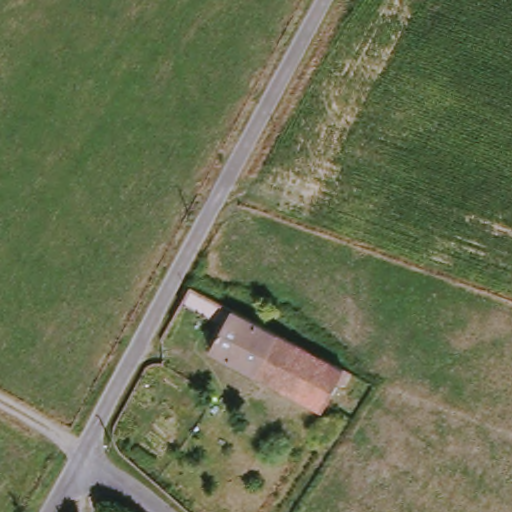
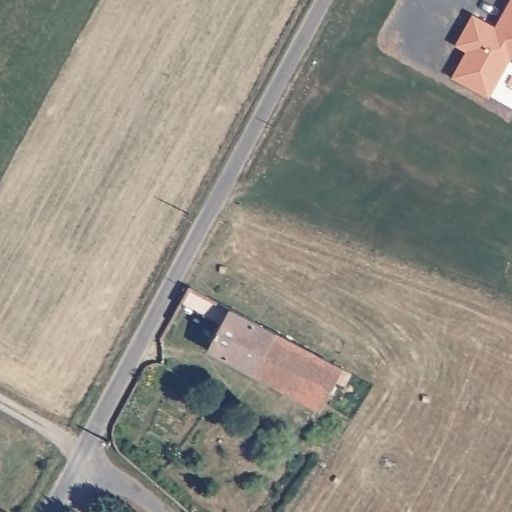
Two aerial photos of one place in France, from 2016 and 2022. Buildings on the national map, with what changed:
new [(457,82),(470,53),(458,47),(475,20),(498,32),(512,7),(512,59),(490,100),(457,82)]
unchanged [(213,322),(175,301),(185,282),(345,372),(325,415),(200,346),(213,322)]

